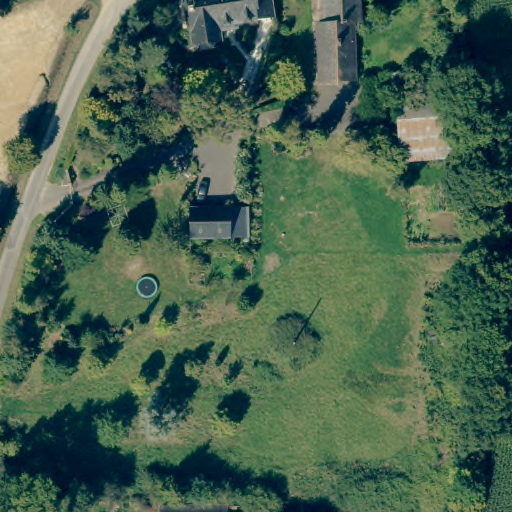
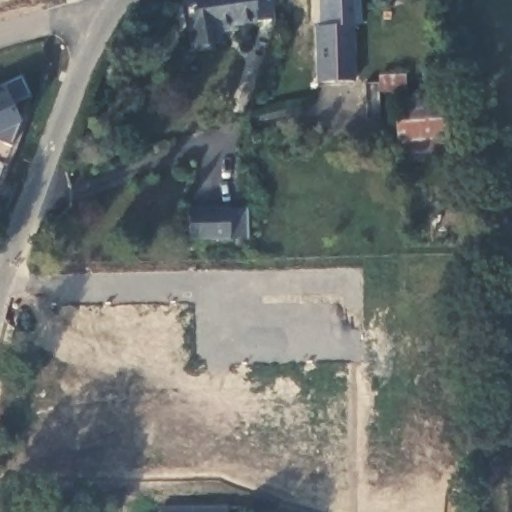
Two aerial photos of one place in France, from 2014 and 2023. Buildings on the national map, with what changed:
unchanged [(275,20),(217,27),(220,43),(194,46),(186,0),(271,0),(275,20)]
unchanged [(366,30),(357,31),(358,85),(322,84),(321,31),(327,30),(326,0),(363,0),(366,30)]
unchanged [(395,1),(385,0),(395,0),(395,1)]
new [(30,95),(13,103),(20,123),(11,145),(0,140),(0,85),(21,76),(30,95)]
unchanged [(396,103),(445,99),(452,157),(398,163),(396,103)]
unchanged [(230,209),(249,209),(249,231),(249,239),(230,239),(190,240),(189,226),(189,209),(230,209)]
unchanged [(232,507),(232,512),(165,512),(165,508),(232,507)]

